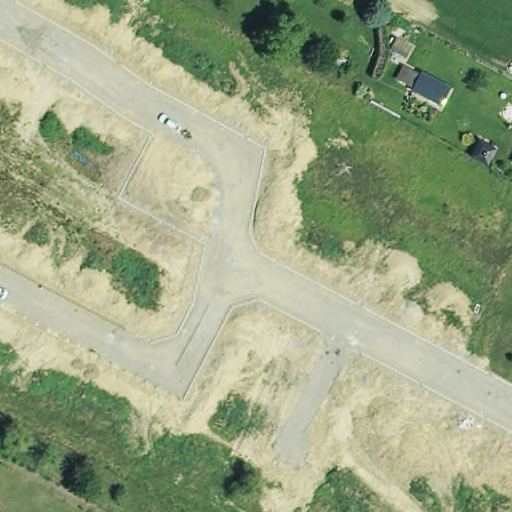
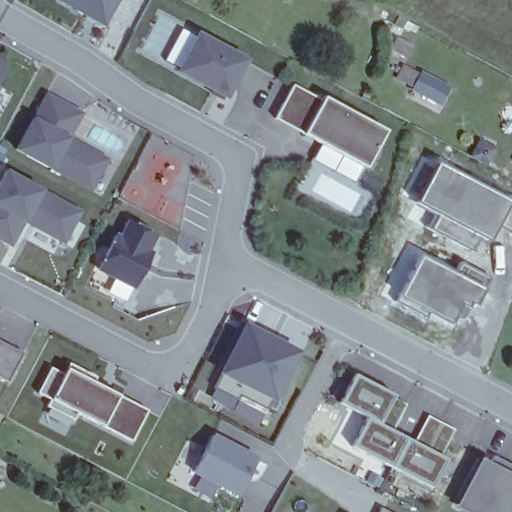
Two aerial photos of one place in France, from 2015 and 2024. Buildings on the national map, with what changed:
new [(104,27),(57,0),(119,0),(104,27)]
new [(198,35),(244,60),(225,95),(180,70),(198,35)]
new [(0,62),(6,66),(0,78),(0,62)]
unchanged [(422,73),(449,87),(440,103),(413,89),(422,73)]
new [(300,135),(273,119),(293,84),(320,100),(322,96),(387,131),(365,170),(300,135)]
new [(91,192),(50,170),(14,150),(32,117),(45,92),(84,112),(70,137),(110,159),(91,192)]
new [(413,204),(435,162),(512,199),(512,233),(497,226),(487,244),(481,241),(475,254),(425,227),(432,214),(413,204)]
new [(25,222),(13,243),(0,236),(0,185),(7,172),(81,212),(65,243),(25,222)]
new [(163,237),(136,290),(97,269),(123,216),(163,237)]
new [(420,254),(455,273),(461,262),(489,278),(470,310),(463,305),(450,327),(395,300),(420,254)]
new [(272,402),(267,410),(239,395),(236,400),(215,389),(223,377),(217,373),(244,322),(300,351),(272,402)]
new [(8,381),(0,377),(0,340),(23,353),(8,381)]
new [(98,378),(95,385),(148,411),(132,443),(78,415),(75,422),(47,409),(51,402),(39,395),(53,369),(65,375),(70,364),(98,378)]
new [(338,403),(354,374),(393,395),(392,397),(407,405),(394,432),(403,437),(388,467),(350,447),(365,417),(338,403)]
new [(388,467),(403,437),(413,442),(427,416),(455,430),(440,457),(445,459),(430,488),(388,467)]
unchanged [(0,418),(3,420),(0,426),(0,418)]
new [(239,498),(194,474),(214,435),(258,459),(239,498)]
new [(490,463),(494,456),(512,465),(512,512),(472,512),(457,505),(477,466),(481,458),(490,463)]
new [(387,512),(380,512),(381,510),(387,512)]

